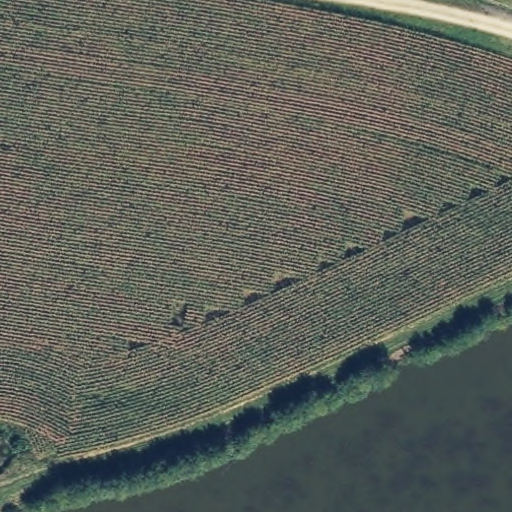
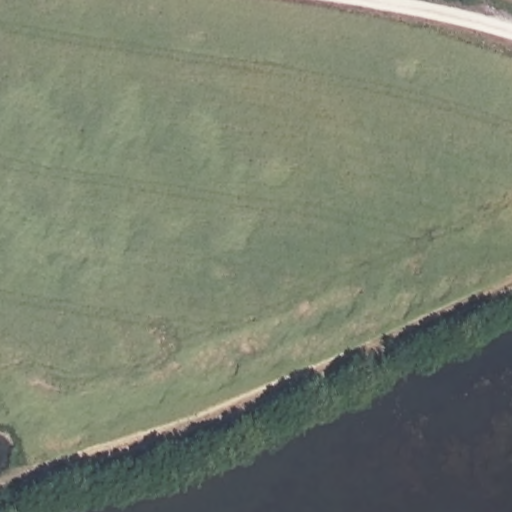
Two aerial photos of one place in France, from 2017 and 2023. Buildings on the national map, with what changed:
[]

